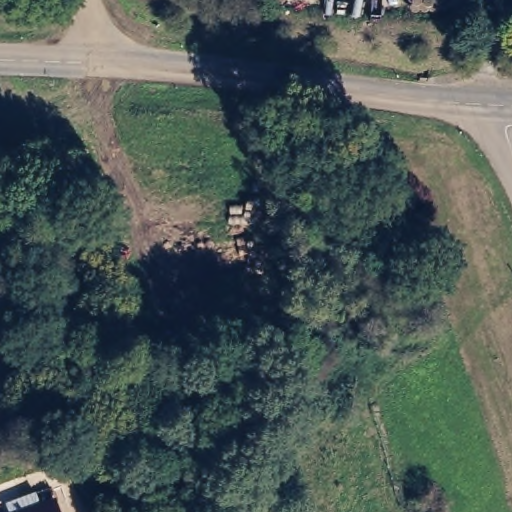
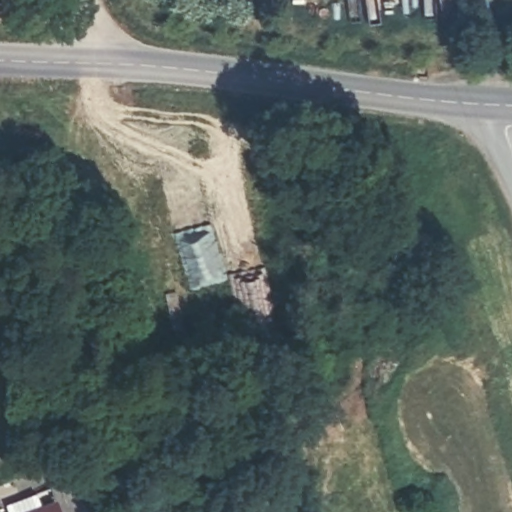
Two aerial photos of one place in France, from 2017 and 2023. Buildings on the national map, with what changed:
unchanged [(9,508),(54,491),(62,512),(11,512),(9,508)]

